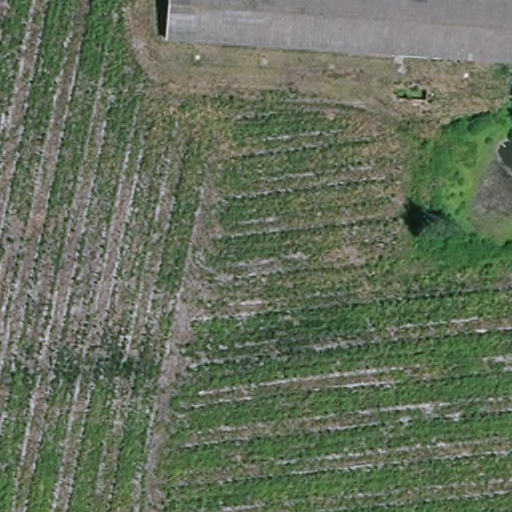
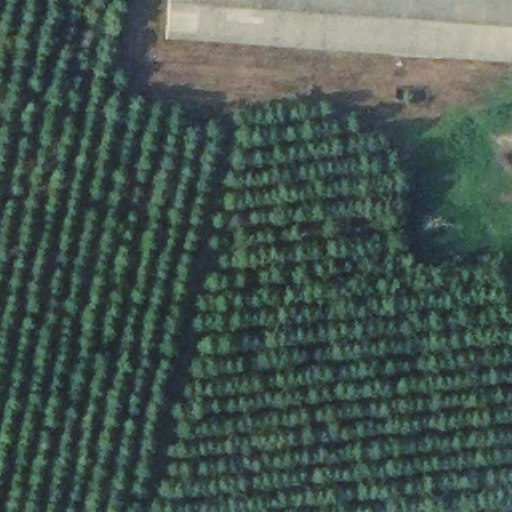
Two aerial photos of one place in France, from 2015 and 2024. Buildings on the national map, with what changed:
unchanged [(169,0),(512,0),(512,56),(167,31),(169,0)]

